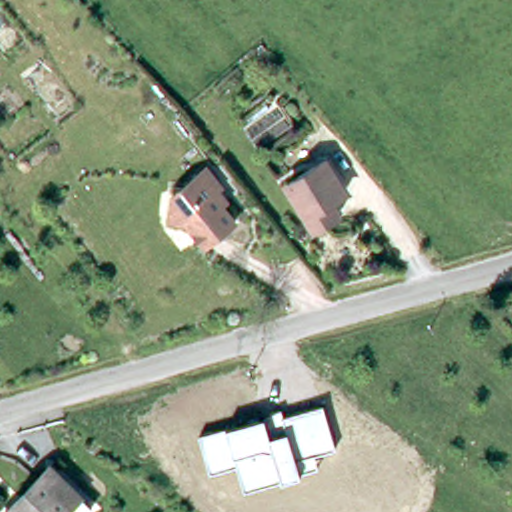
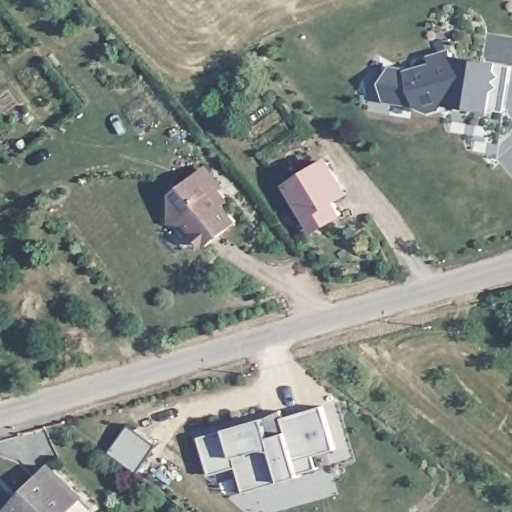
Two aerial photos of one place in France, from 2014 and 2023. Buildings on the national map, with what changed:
new [(497,70),(500,75),(494,80),(500,85),(494,89),(490,110),(445,104),(442,111),(431,114),(415,107),(384,102),(380,84),(390,66),(405,68),(430,62),(427,55),(451,48),(455,56),(497,63),(497,70)]
unchanged [(315,234),(290,192),(307,180),(325,167),(345,197),(334,204),(342,218),(315,234)]
unchanged [(201,249),(182,228),(167,227),(170,192),(187,192),(187,183),(197,174),(215,194),(222,203),(217,208),(230,225),(201,249)]
unchanged [(284,417),(324,406),(336,449),(315,456),(318,469),(300,477),(281,482),(244,494),(236,467),(210,475),(200,437),(227,428),(264,417),(262,415),(282,409),(284,417)]
new [(157,444),(136,473),(109,452),(129,425),(157,444)]
unchanged [(9,503),(42,472),(52,462),(92,504),(89,507),(83,512),(7,512),(4,508),(9,503)]

